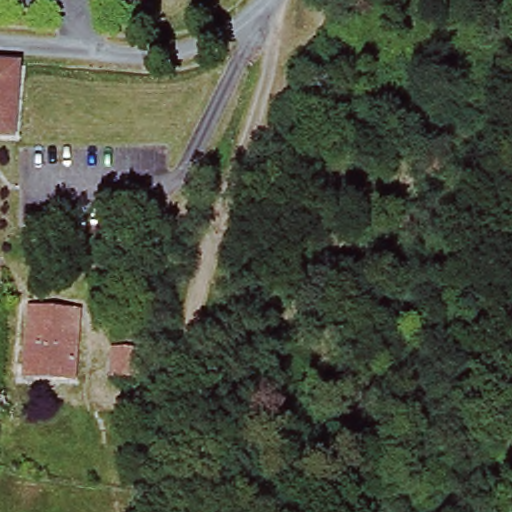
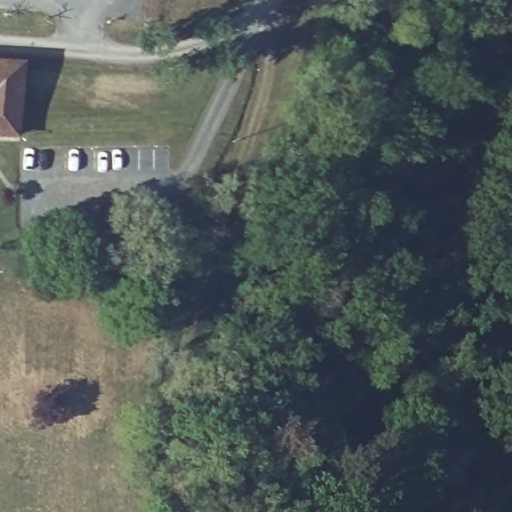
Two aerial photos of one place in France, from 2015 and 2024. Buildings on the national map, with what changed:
unchanged [(15,71),(11,146),(0,145),(0,70),(15,71)]
demolished [(77,312),(72,381),(23,379),(27,308),(77,312)]
demolished [(146,363),(144,392),(115,391),(116,360),(146,363)]

